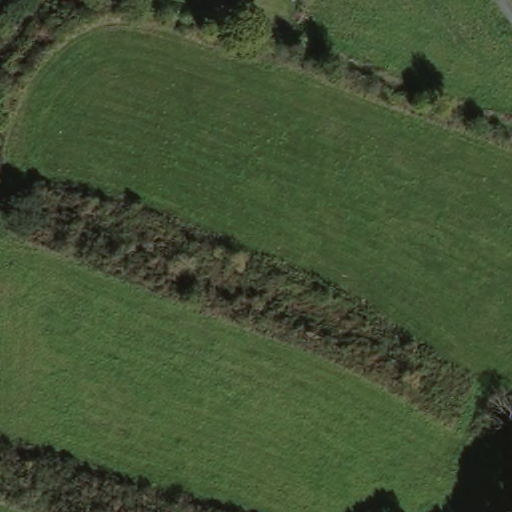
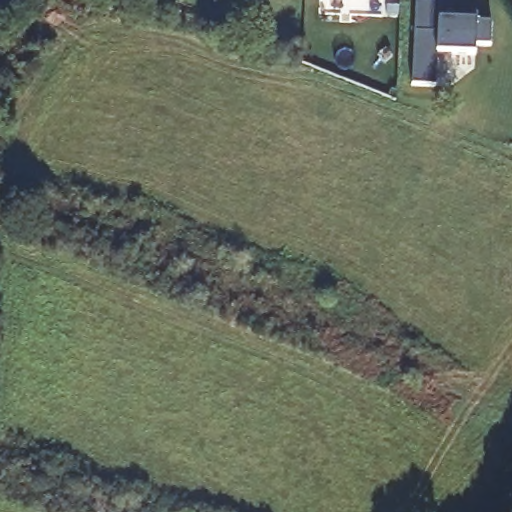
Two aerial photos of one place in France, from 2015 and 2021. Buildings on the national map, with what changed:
new [(440,18),(456,18),(456,11),(477,13),(477,21),(491,22),(491,44),(476,44),(476,53),(439,51),(437,85),(413,84),(415,30),(417,0),(440,0),(440,18)]

